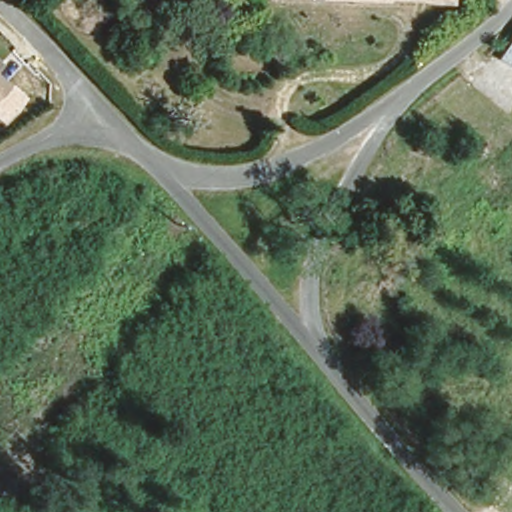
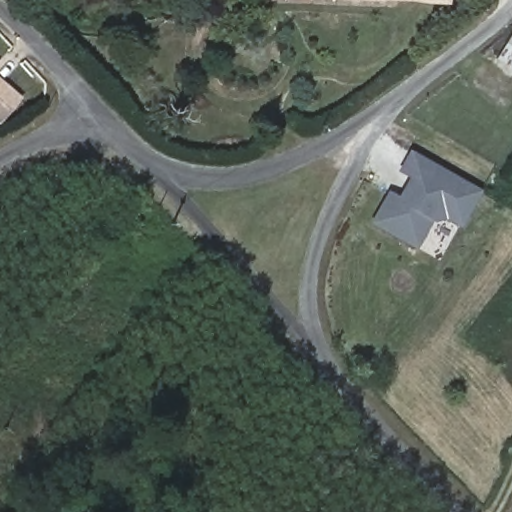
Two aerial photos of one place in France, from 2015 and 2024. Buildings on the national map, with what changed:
unchanged [(380,0),(432,0),(432,2),(380,0)]
unchanged [(512,33),(512,70),(494,62),(512,33)]
new [(417,250),(371,222),(388,191),(397,197),(408,178),(397,171),(410,151),(481,191),(460,226),(445,219),(432,222),(417,250)]

